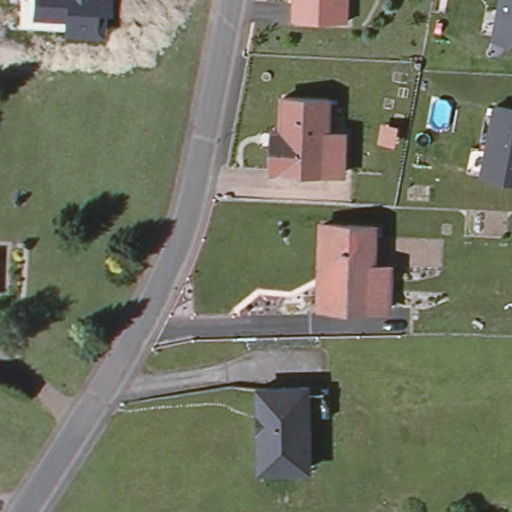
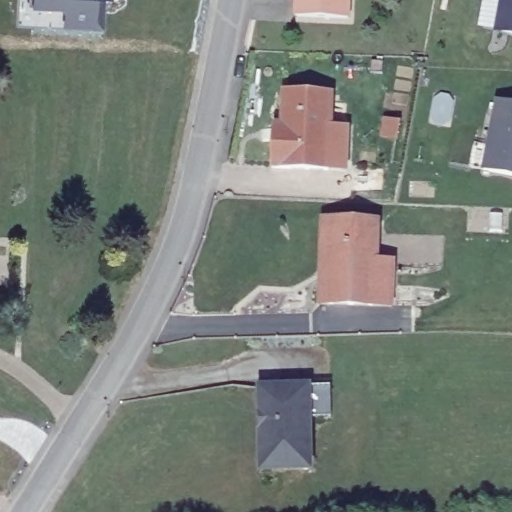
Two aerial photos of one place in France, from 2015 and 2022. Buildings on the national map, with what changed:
unchanged [(108,9),(102,9),(101,35),(61,31),(62,16),(30,16),(31,0),(109,0),(108,9)]
unchanged [(341,19),(288,15),(289,0),(342,0),(341,19)]
unchanged [(496,32),(502,0),(512,0),(512,35),(496,32)]
unchanged [(339,170),(321,169),(265,165),(267,141),(268,125),(279,126),(281,93),(325,96),(323,129),(341,130),(339,170)]
unchanged [(481,170),(495,102),(512,105),(512,177),(481,170)]
unchanged [(390,297),(373,298),(330,300),(323,300),(320,219),(327,219),(370,219),(371,255),(389,255),(390,297)]
unchanged [(253,412),(253,389),(300,387),(303,468),(255,470),(255,447),(260,447),(258,412),(253,412)]

